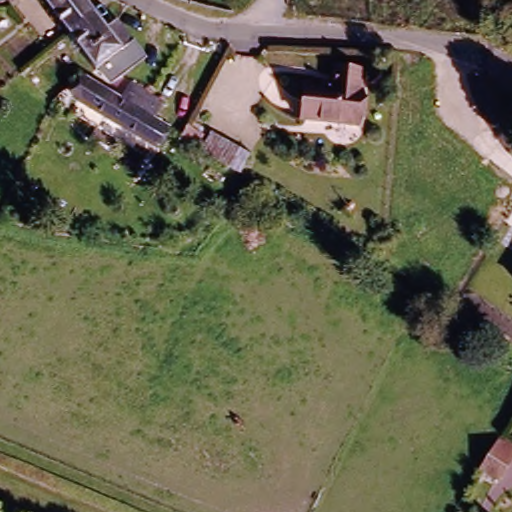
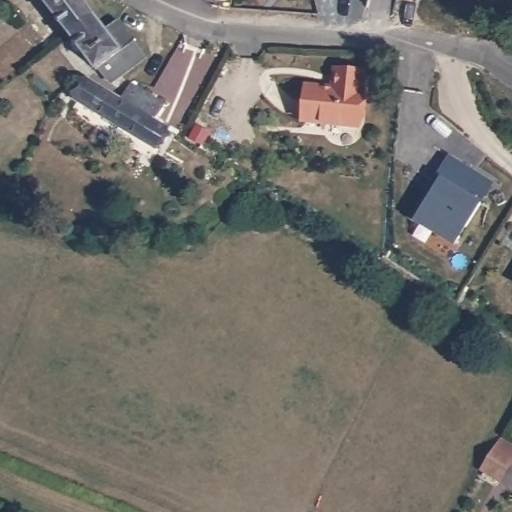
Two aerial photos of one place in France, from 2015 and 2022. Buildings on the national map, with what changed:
unchanged [(66,31),(43,0),(81,0),(90,13),(66,31)]
unchanged [(87,60),(66,31),(90,13),(102,31),(114,24),(141,62),(130,70),(125,62),(99,77),(87,60)]
unchanged [(365,70),(360,126),(300,120),(304,86),(335,88),(335,68),(365,70)]
unchanged [(167,103),(157,120),(174,131),(160,154),(75,105),(79,73),(127,99),(137,85),(167,103)]
demolished [(254,156),(245,177),(185,147),(195,126),(254,156)]
new [(454,239),(410,212),(427,186),(432,189),(440,174),(437,171),(449,151),(492,178),(454,239)]

